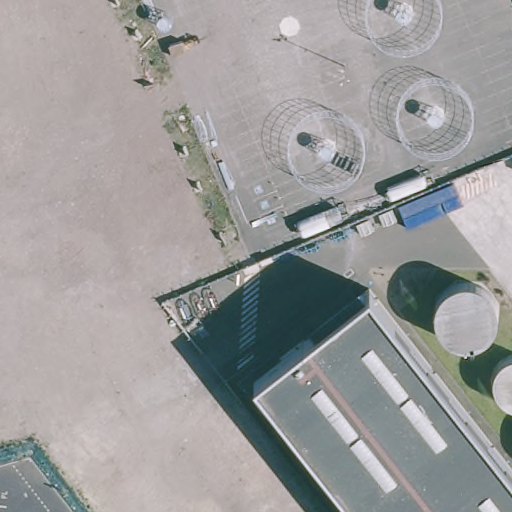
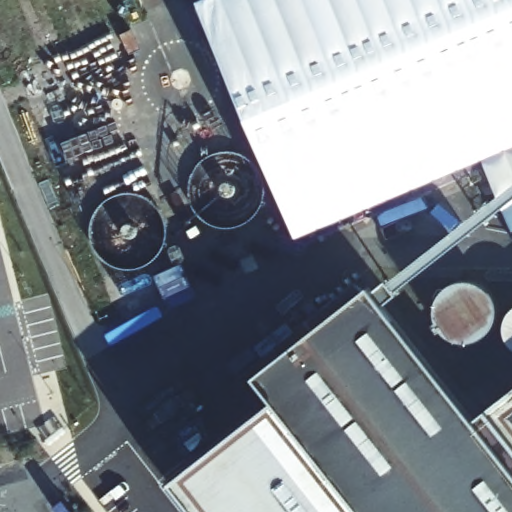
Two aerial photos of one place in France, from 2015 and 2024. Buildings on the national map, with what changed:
new [(223,0),(512,0),(512,232),(485,172),(303,244),(205,8),(223,0)]
unchanged [(368,282),(469,412),(512,467),(512,512),(360,512),(250,372),(368,282)]
new [(469,412),(512,378),(512,467),(469,412)]
new [(212,512),(177,467),(267,394),(359,512),(212,512)]

